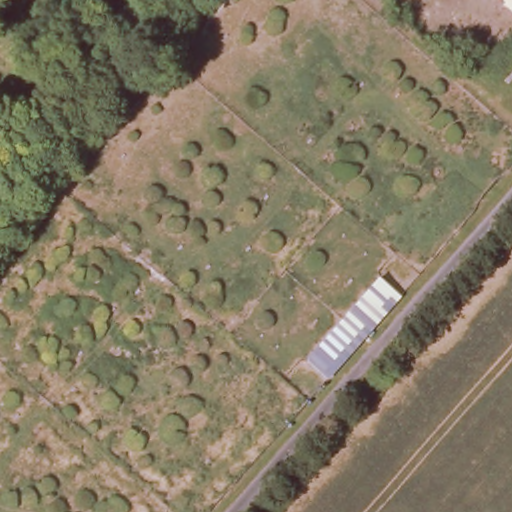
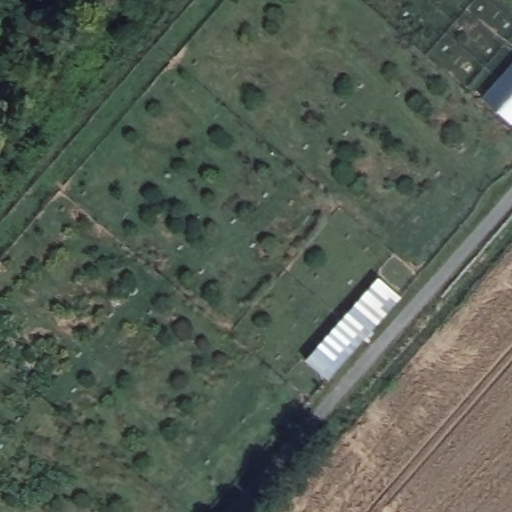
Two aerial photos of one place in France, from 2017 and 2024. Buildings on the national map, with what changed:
new [(483,97),(512,64),(512,123),(483,97)]
unchanged [(376,272),(401,296),(324,381),(301,358),(376,272)]

